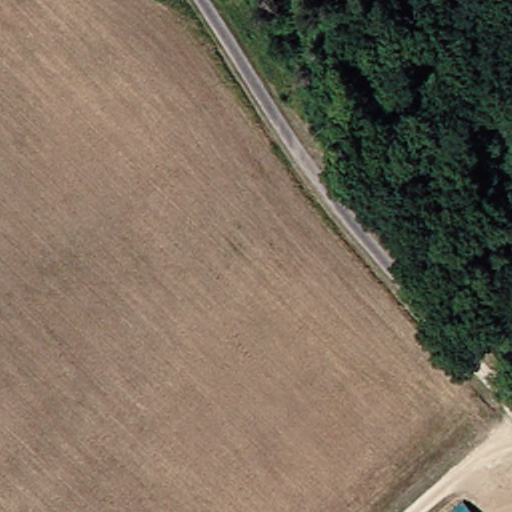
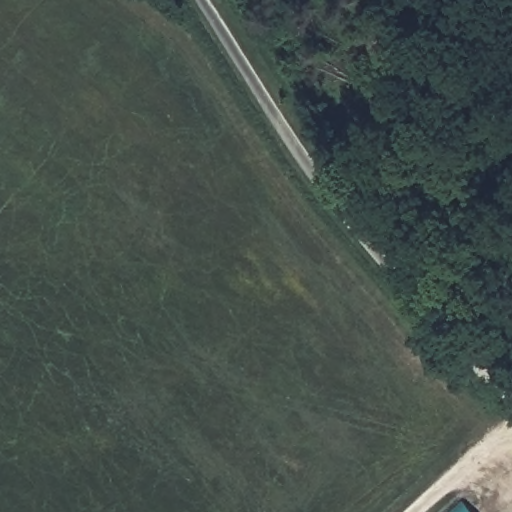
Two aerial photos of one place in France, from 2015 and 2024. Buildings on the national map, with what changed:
unchanged [(466,512),(472,507),(477,512),(466,512)]

